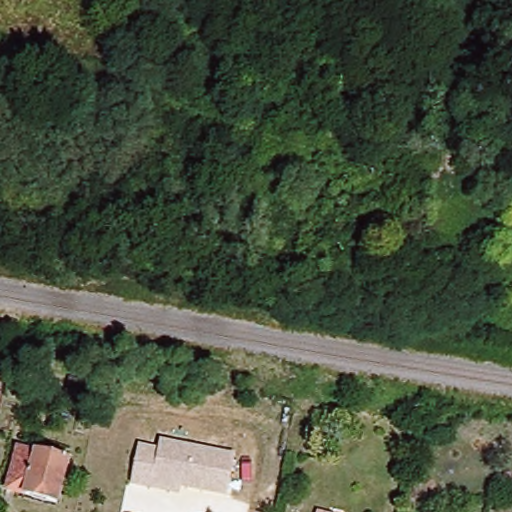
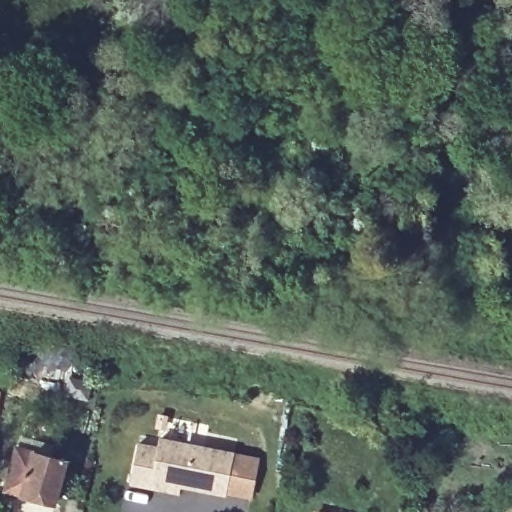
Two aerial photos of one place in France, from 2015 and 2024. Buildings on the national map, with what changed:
unchanged [(489,268),(475,273),(470,261),(485,256),(489,268)]
unchanged [(422,262),(433,262),(432,275),(422,275),(422,262)]
unchanged [(53,391),(50,401),(13,394),(13,397),(4,395),(7,381),(53,391)]
unchanged [(137,442),(157,445),(159,436),(234,451),(225,494),(180,486),(178,494),(130,485),(137,442)]
unchanged [(8,478),(16,447),(66,460),(55,503),(23,494),(5,489),(8,478)]
unchanged [(331,512),(315,512),(316,508),(331,512)]

